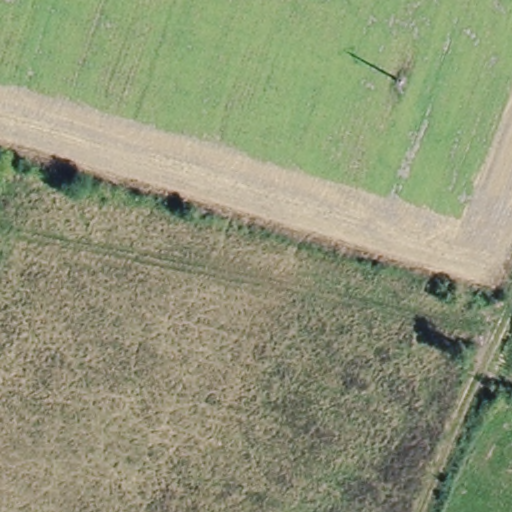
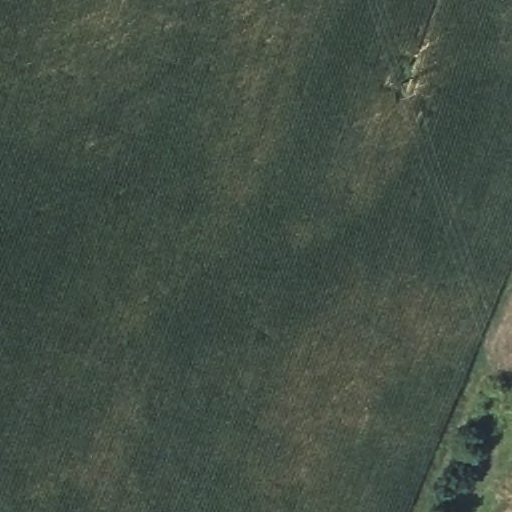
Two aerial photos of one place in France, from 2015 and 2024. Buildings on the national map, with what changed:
[]

